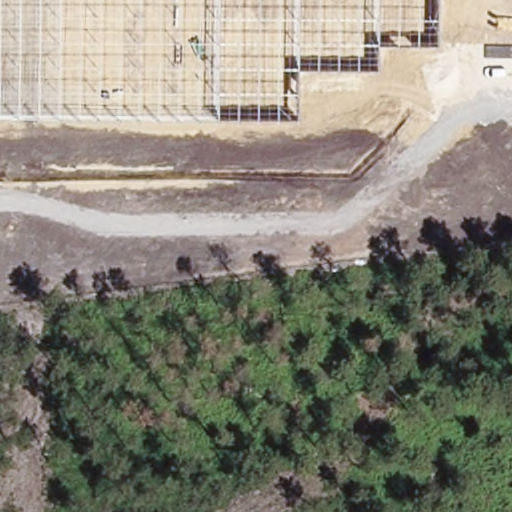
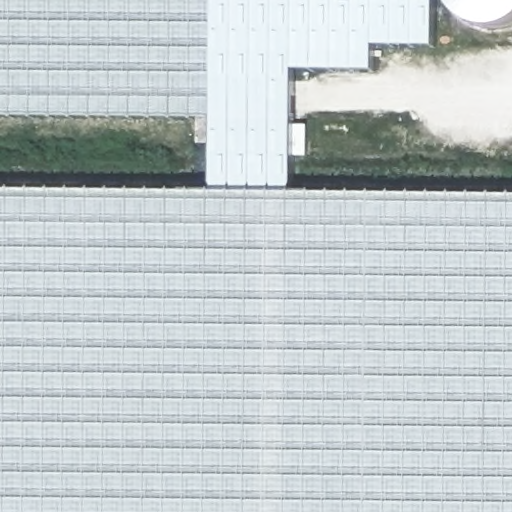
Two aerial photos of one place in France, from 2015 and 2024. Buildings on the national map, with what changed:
unchanged [(213,119),(0,117),(0,0),(435,0),(435,45),(374,45),(374,70),(294,69),(294,120),(213,119)]
new [(294,120),(294,193),(212,192),(213,119),(294,120)]
new [(294,193),(512,195),(512,512),(0,512),(0,190),(212,192),(294,193)]

